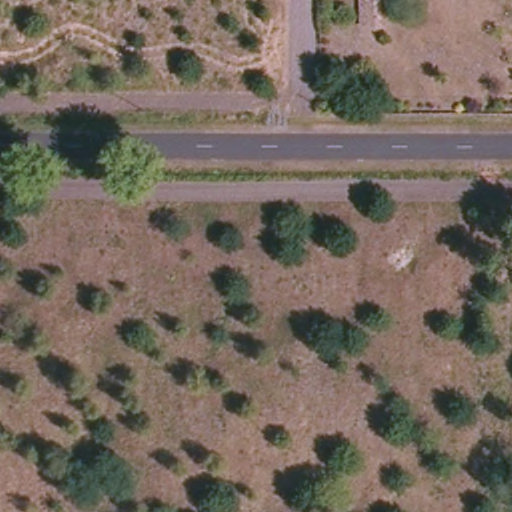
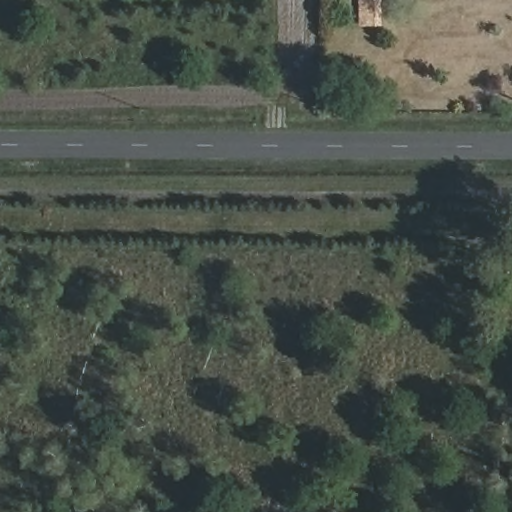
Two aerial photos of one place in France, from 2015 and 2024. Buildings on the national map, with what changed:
unchanged [(362,0),(381,0),(382,22),(360,24),(362,0)]

